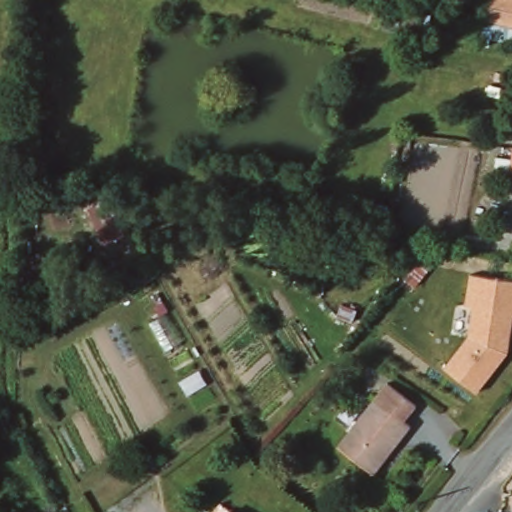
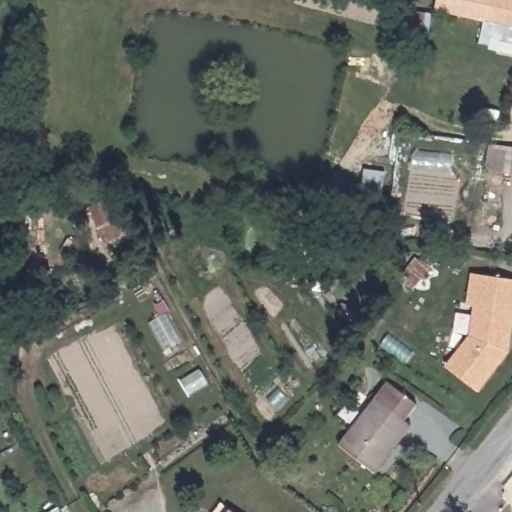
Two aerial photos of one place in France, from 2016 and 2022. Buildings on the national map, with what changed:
new [(435,0),(512,0),(512,27),(433,10),(435,0)]
demolished [(480,17),(483,0),(512,0),(512,24),(480,17)]
unchanged [(445,365),(468,336),(471,306),(465,305),(469,273),(512,280),(512,327),(509,351),(477,392),(445,365)]
unchanged [(417,423),(378,471),(340,441),(379,393),(417,423)]
unchanged [(233,512),(232,512),(232,511),(233,512)]

